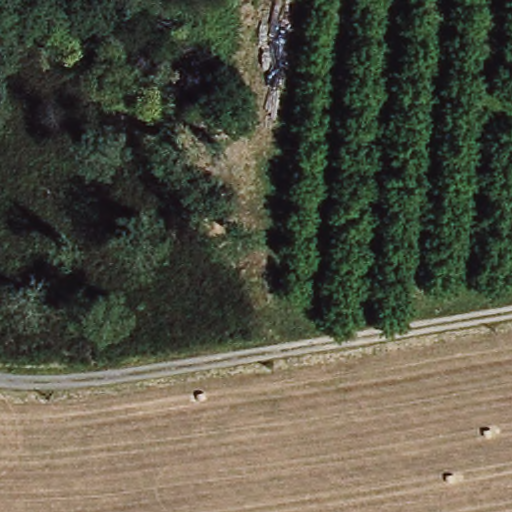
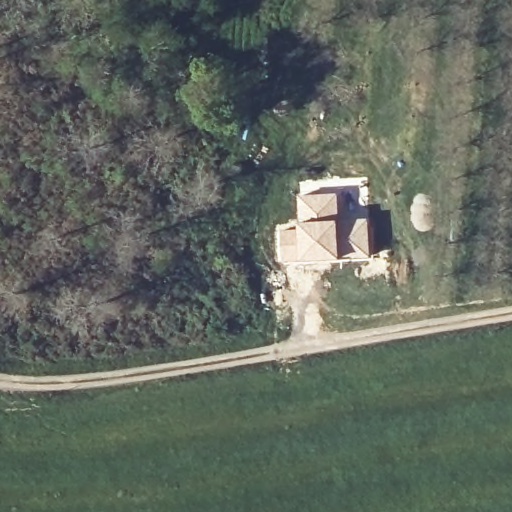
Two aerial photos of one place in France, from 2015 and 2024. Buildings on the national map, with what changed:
new [(299,194),(338,192),(342,219),(345,258),(303,261),(280,263),(277,228),(300,225),(299,194)]
new [(370,217),(372,256),(345,258),(342,219),(370,217)]

